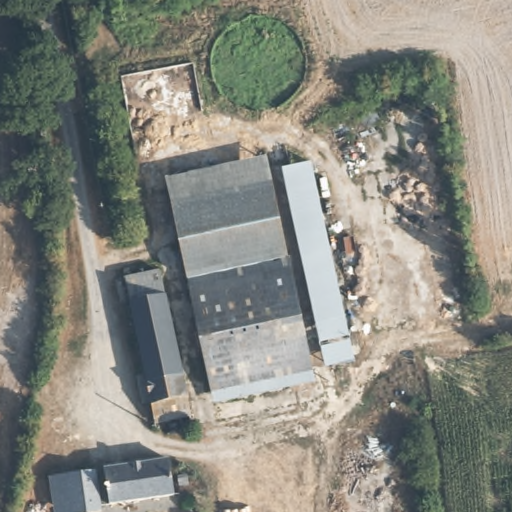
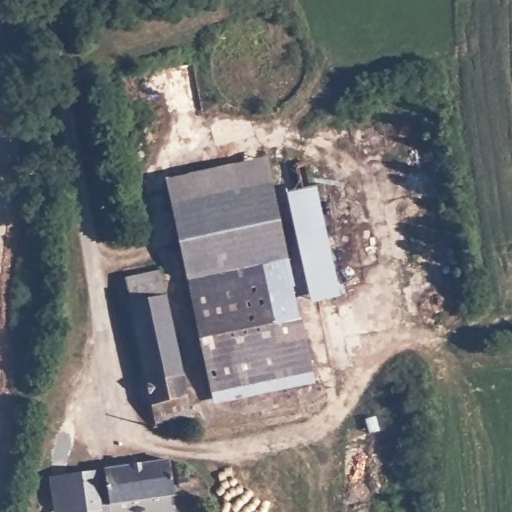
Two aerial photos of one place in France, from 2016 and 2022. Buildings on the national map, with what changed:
unchanged [(269,158),(288,256),(265,261),(186,277),(168,178),(269,158)]
unchanged [(309,298),(282,169),(313,162),(340,295),(309,298)]
unchanged [(288,256),(313,382),(289,387),(265,261),(288,256)]
unchanged [(289,387),(210,402),(186,277),(265,261),(289,387)]
unchanged [(160,269),(192,417),(155,425),(125,277),(160,269)]
unchanged [(109,503),(101,465),(169,453),(175,493),(109,503)]
unchanged [(93,465),(98,509),(76,512),(68,512),(65,468),(93,465)]

